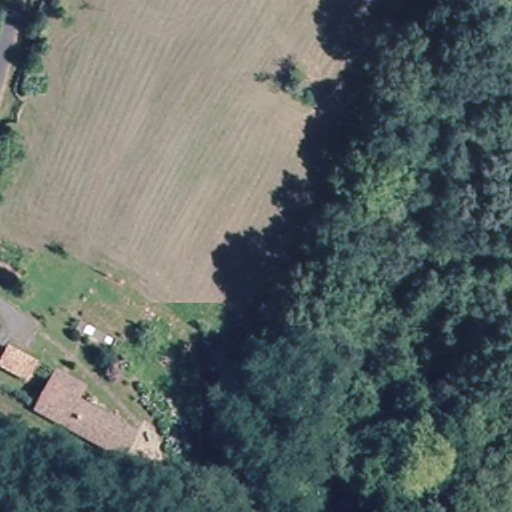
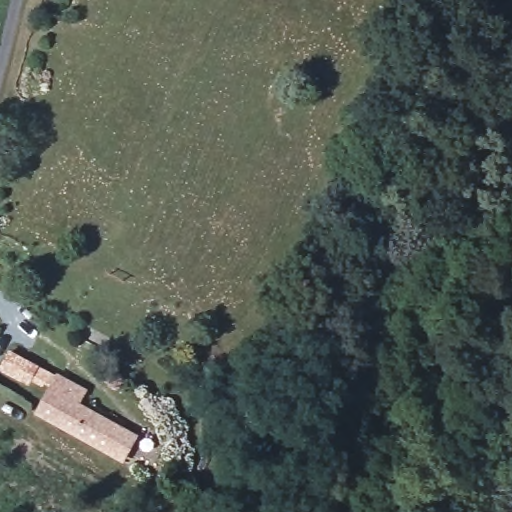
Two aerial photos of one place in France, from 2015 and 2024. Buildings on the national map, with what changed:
unchanged [(56,380),(85,397),(76,413),(132,445),(119,469),(35,417),(56,380)]

